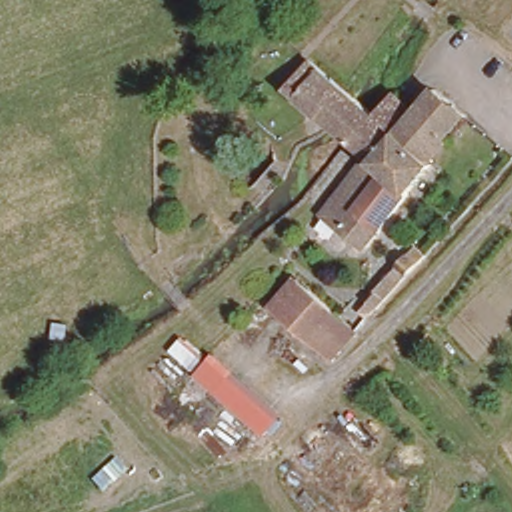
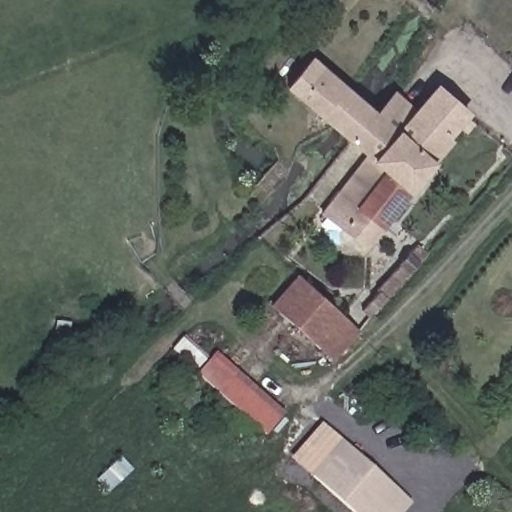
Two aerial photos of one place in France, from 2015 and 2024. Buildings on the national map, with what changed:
unchanged [(369,108),(345,136),(286,84),(308,57),(369,108)]
unchanged [(369,108),(380,116),(399,93),(423,114),(441,93),(470,116),(429,164),(431,166),(365,243),(325,209),(368,159),(345,136),(369,108)]
unchanged [(372,289),(422,230),(436,239),(382,298),(372,289)]
unchanged [(359,327),(333,358),(271,304),(297,272),(359,327)]
new [(196,368),(175,349),(185,338),(206,356),(196,368)]
unchanged [(284,413),(267,433),(198,373),(215,354),(284,413)]
new [(386,512),(356,512),(314,475),(345,440),(404,491),(386,512)]

